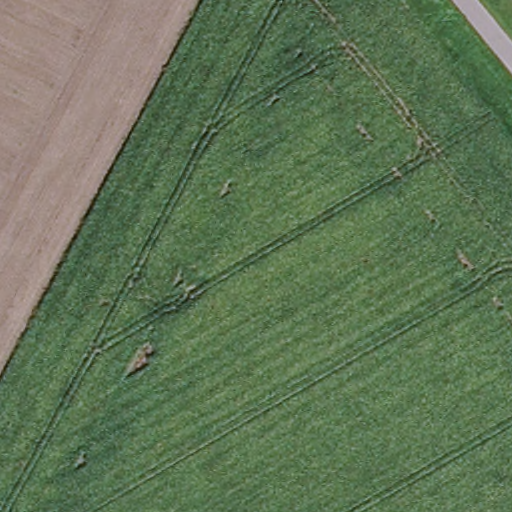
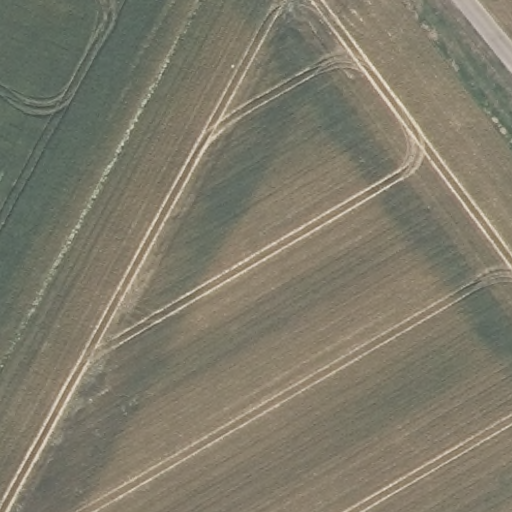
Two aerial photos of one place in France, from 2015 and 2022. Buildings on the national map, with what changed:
[]

